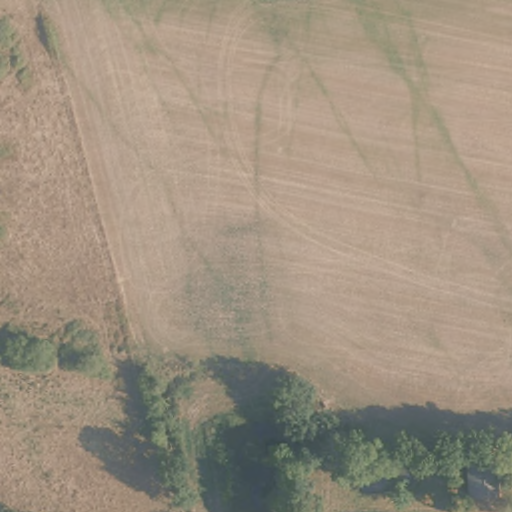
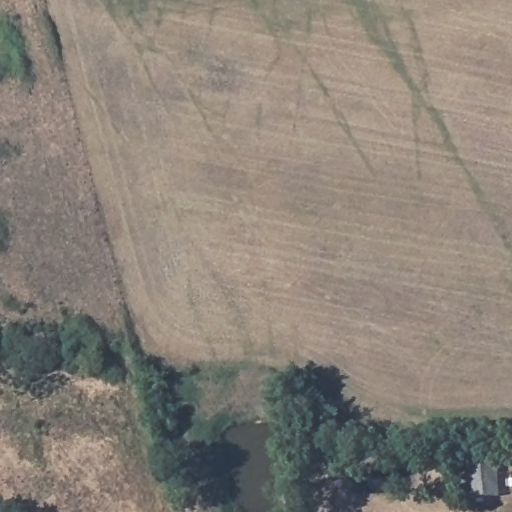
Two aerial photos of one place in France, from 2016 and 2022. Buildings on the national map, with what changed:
unchanged [(501,468),(501,489),(465,490),(464,469),(501,468)]

